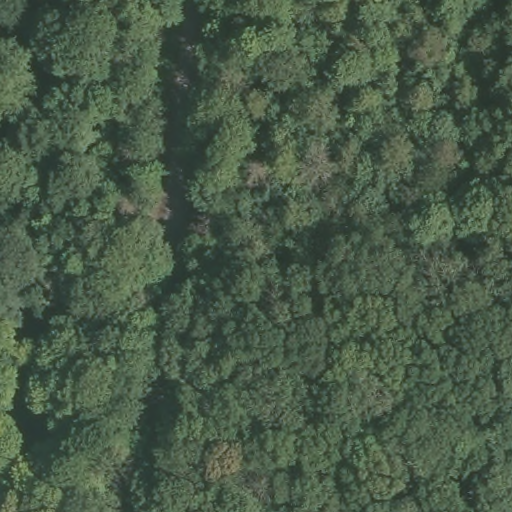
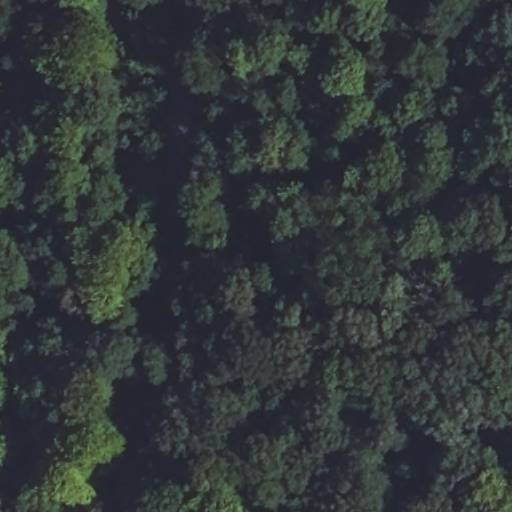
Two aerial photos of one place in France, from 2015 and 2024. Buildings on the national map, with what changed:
unchanged [(465,0),(465,17),(451,17),(450,0),(465,0)]

